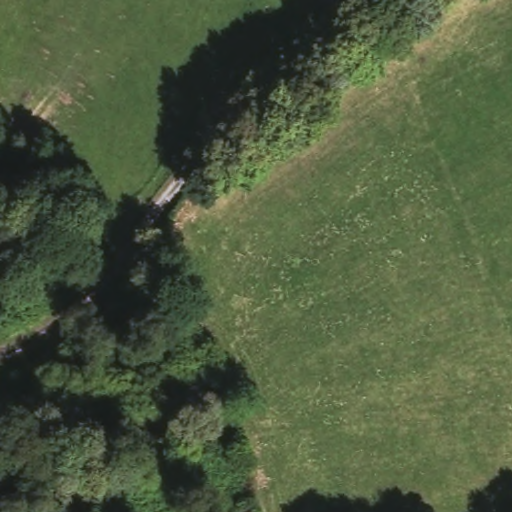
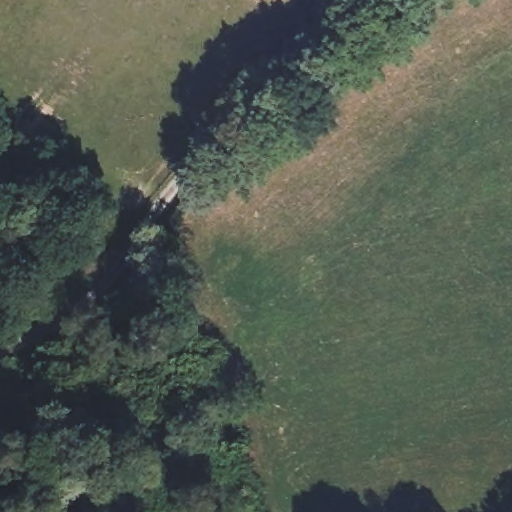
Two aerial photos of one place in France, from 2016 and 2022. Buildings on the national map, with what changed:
unchanged [(409,6),(424,29),(399,45),(386,26),(409,6)]

